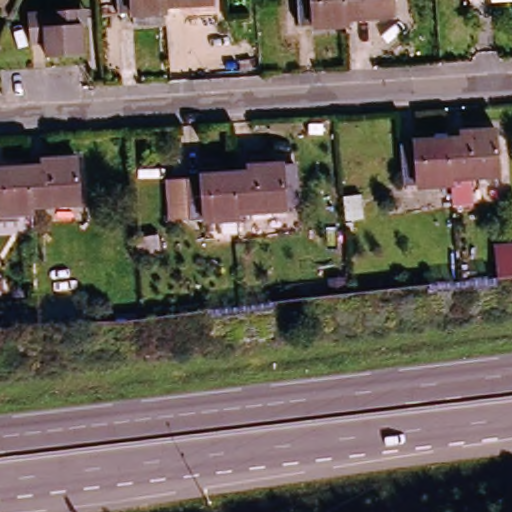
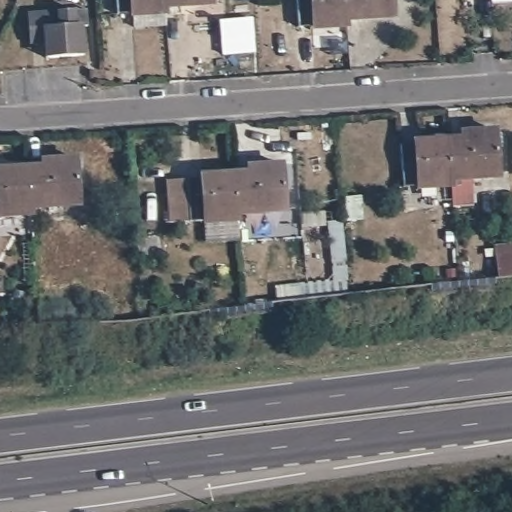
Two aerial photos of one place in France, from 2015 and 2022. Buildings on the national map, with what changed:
unchanged [(171,4),(171,11),(137,14),(137,10),(123,11),(123,0),(170,0),(171,4)]
unchanged [(219,1),(171,4),(170,0),(219,0),(219,1)]
unchanged [(346,24),(346,31),(313,32),(313,29),(298,30),(297,0),(344,0),(346,24)]
unchanged [(393,20),(346,24),(344,0),(392,0),(393,20)]
unchanged [(47,62),(46,46),(31,47),(29,17),(70,15),(82,15),(83,15),(83,26),(83,30),(84,60),(47,62)]
unchanged [(467,135),(467,130),(500,127),(503,175),(472,176),(473,205),(458,205),(457,183),(457,177),(454,135),(467,135)]
unchanged [(457,177),(457,183),(421,185),(421,181),(407,181),(406,143),(419,143),(418,137),(454,135),(457,177)]
unchanged [(46,165),(45,159),(80,156),(83,202),(34,205),(34,200),(33,165),(46,165)]
unchanged [(248,172),(248,165),(282,162),(284,209),(236,210),(234,172),(248,172)]
unchanged [(34,200),(34,205),(34,211),(2,212),(1,209),(0,209),(0,171),(0,166),(33,165),(34,200)]
unchanged [(165,181),(185,180),(199,180),(199,174),(234,172),(236,210),(237,216),(202,219),(202,214),(186,215),(166,215),(165,181)]
unchanged [(342,210),(341,189),(357,188),(359,214),(342,214),(342,210)]

